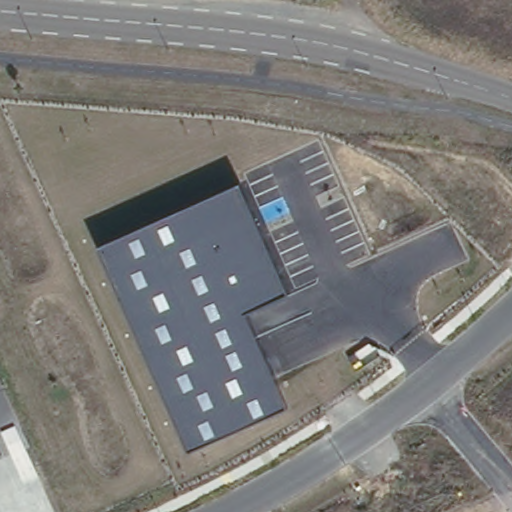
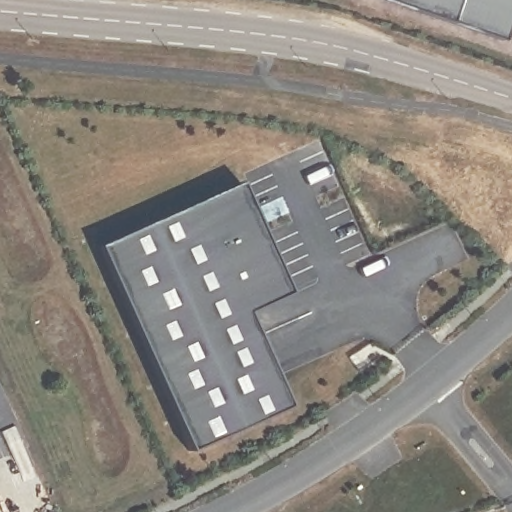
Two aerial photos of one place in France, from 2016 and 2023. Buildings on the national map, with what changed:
new [(500,40),(382,0),(512,0),(512,8),(500,40)]
unchanged [(99,246),(240,183),(290,291),(246,311),(286,407),(190,449),(99,246)]

